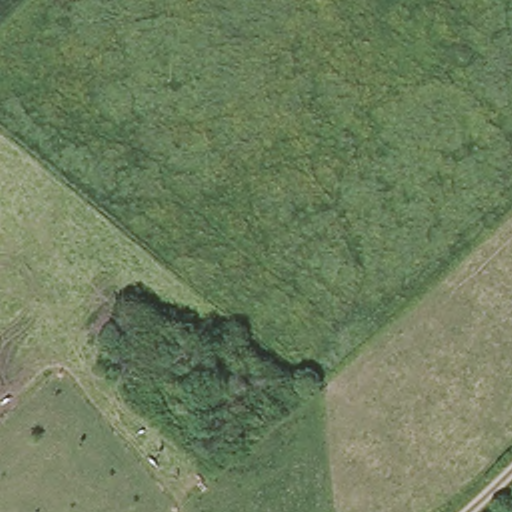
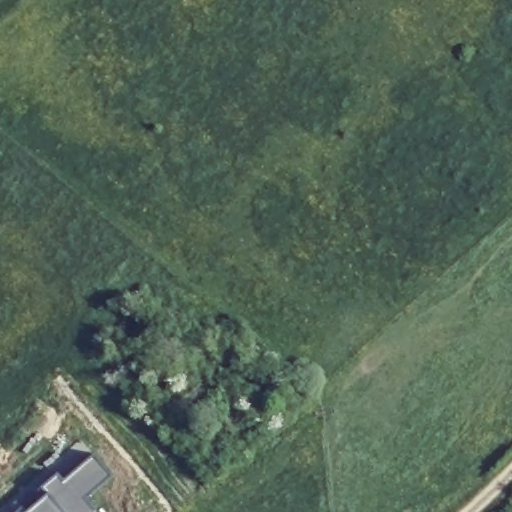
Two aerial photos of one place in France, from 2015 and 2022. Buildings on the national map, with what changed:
new [(112,475),(85,498),(95,511),(96,512),(26,512),(46,495),(40,487),(57,473),(63,480),(93,453),(112,475)]
new [(20,507),(25,512),(14,512),(20,507)]

